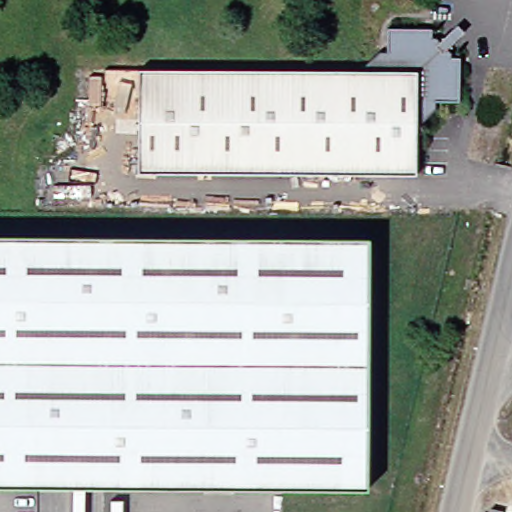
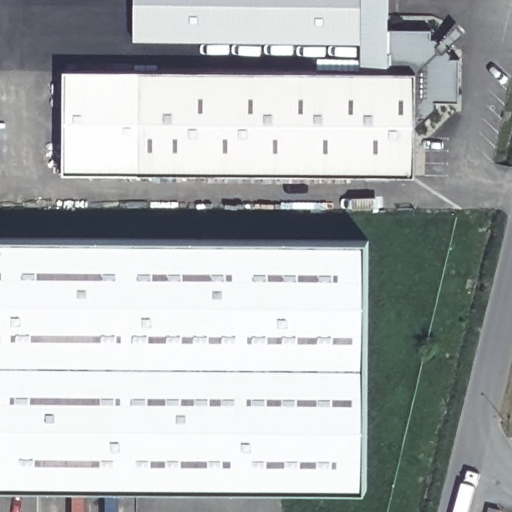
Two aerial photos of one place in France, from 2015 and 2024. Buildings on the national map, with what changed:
new [(388,0),(388,31),(387,55),(380,54),(362,69),(362,43),(136,40),(136,0),(388,0)]
unchanged [(117,70),(353,72),(358,72),(380,54),(387,55),(388,31),(432,31),(432,40),(437,40),(452,56),(452,61),(461,61),(460,105),(437,105),(437,112),(417,131),(416,178),(116,174),(117,70)]
new [(64,173),(64,70),(117,70),(116,174),(64,173)]
unchanged [(0,485),(0,235),(365,242),(358,491),(0,485)]

